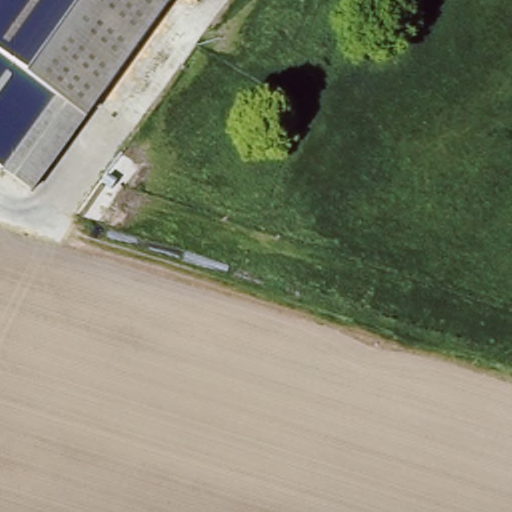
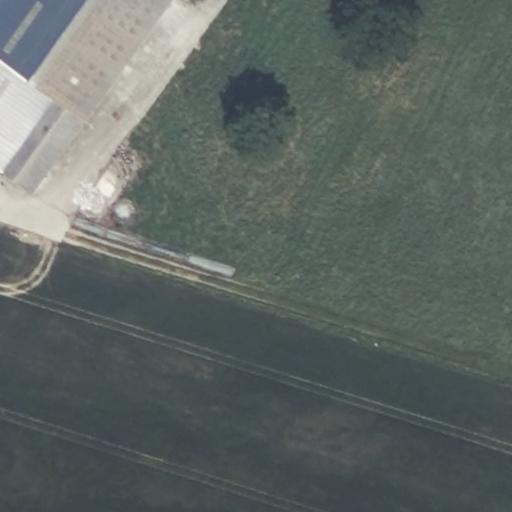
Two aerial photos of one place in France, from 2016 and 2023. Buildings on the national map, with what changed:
unchanged [(33,189),(0,165),(0,0),(170,0),(33,189)]

